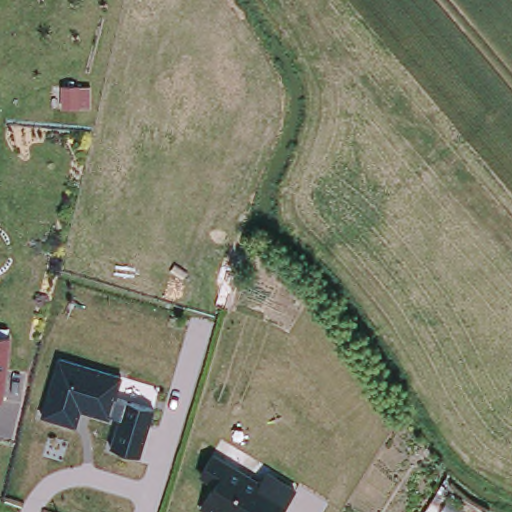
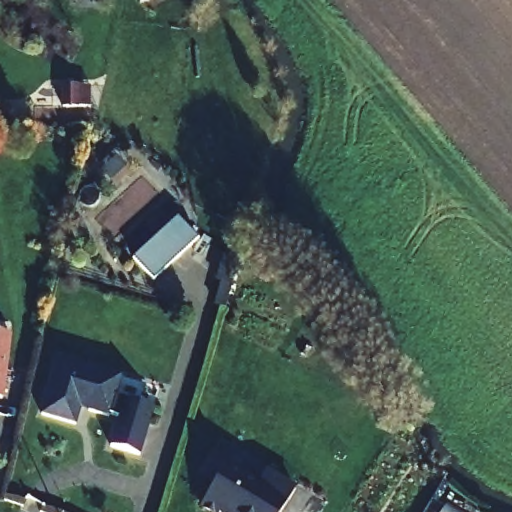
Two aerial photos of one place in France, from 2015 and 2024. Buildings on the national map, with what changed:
new [(197,237),(153,280),(132,257),(177,217),(197,237)]
unchanged [(3,400),(0,400),(0,330),(10,331),(3,400)]
unchanged [(121,370),(115,395),(153,405),(140,454),(111,445),(118,419),(80,407),(76,423),(40,413),(57,351),(121,370)]
unchanged [(258,467),(296,487),(282,512),(211,512),(198,506),(211,482),(198,475),(212,448),(255,472),(258,467)]

